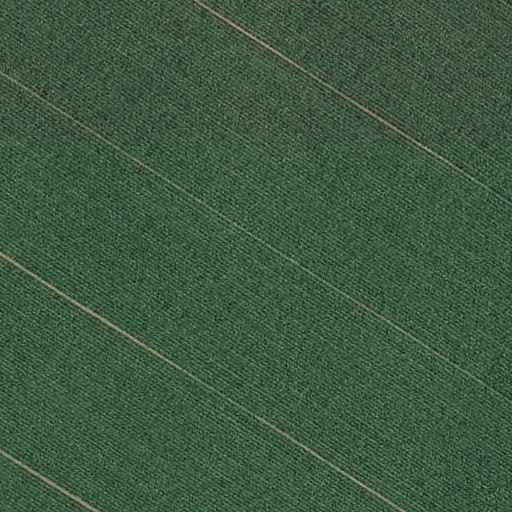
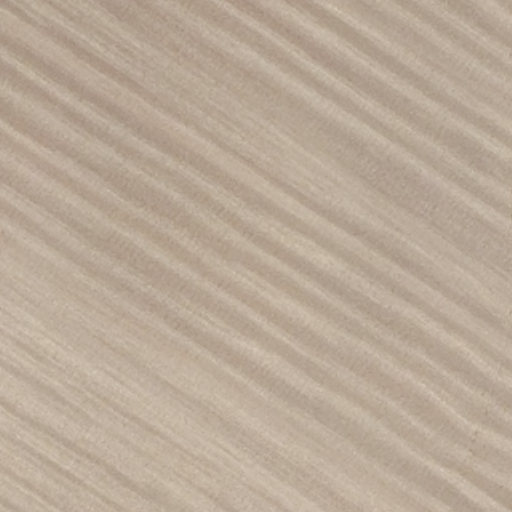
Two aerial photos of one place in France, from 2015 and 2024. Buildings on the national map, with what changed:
[]

